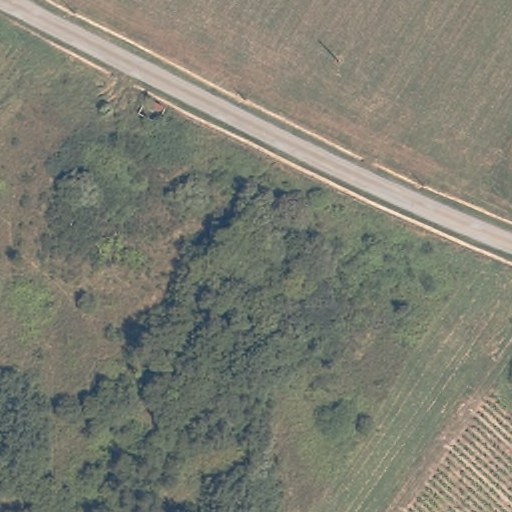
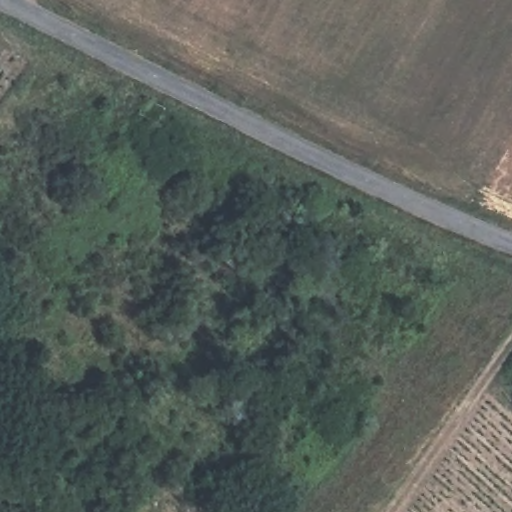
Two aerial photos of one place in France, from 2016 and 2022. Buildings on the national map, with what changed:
unchanged [(149,95),(166,104),(160,118),(141,108),(149,95)]

